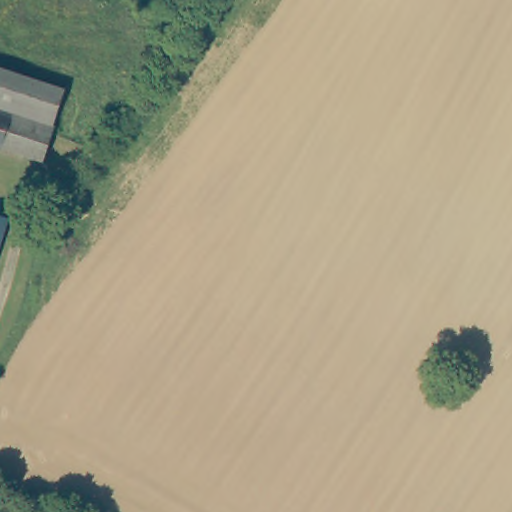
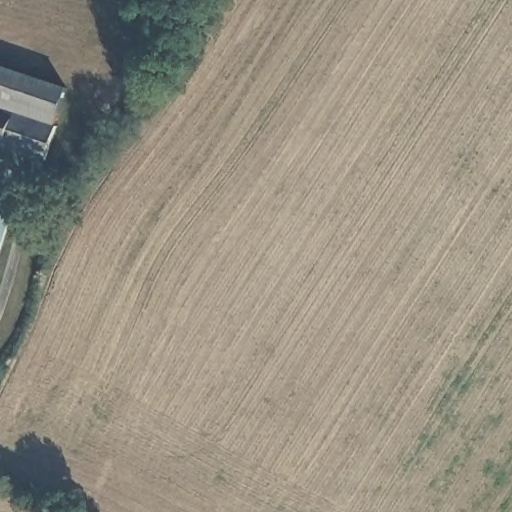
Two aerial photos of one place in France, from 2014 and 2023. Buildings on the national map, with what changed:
unchanged [(72,84),(60,123),(0,102),(0,59),(72,84)]
unchanged [(60,123),(52,153),(50,155),(0,138),(0,102),(60,123)]
unchanged [(15,214),(0,257),(0,209),(15,214)]

